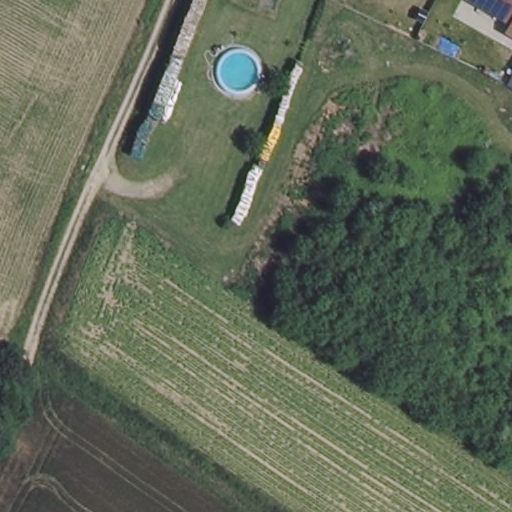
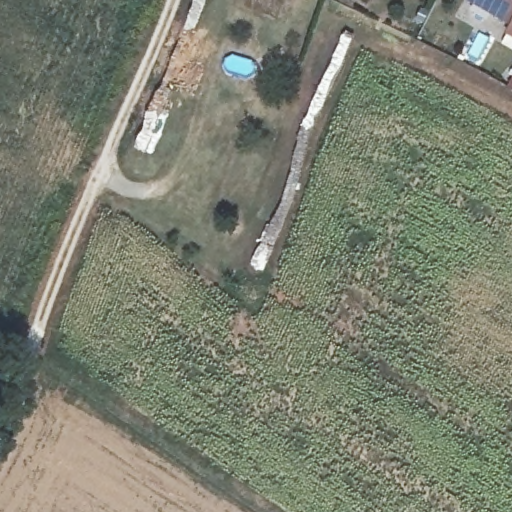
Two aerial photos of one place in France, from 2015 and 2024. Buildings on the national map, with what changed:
unchanged [(503,33),(509,26),(464,0),(512,0),(512,38),(503,33)]

